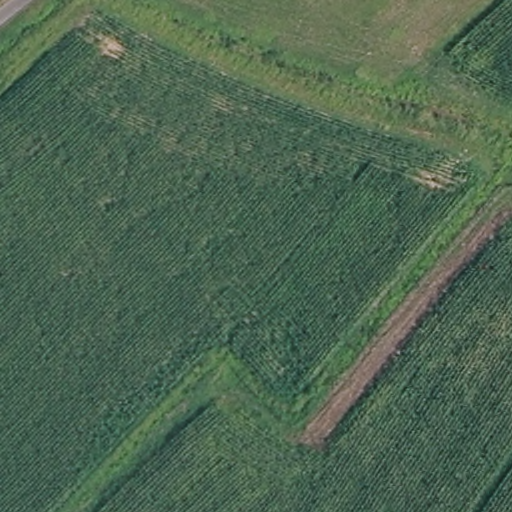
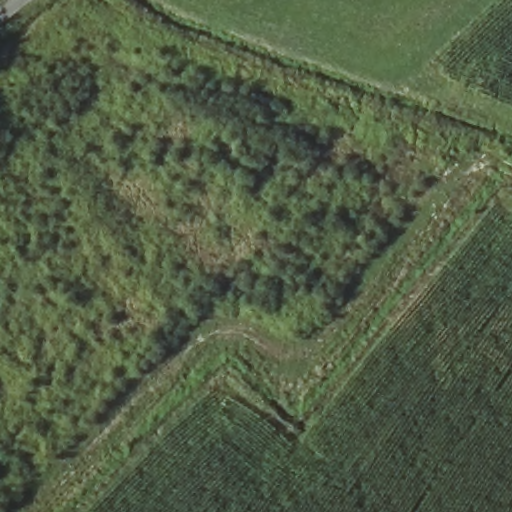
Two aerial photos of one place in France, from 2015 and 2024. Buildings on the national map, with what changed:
[]

